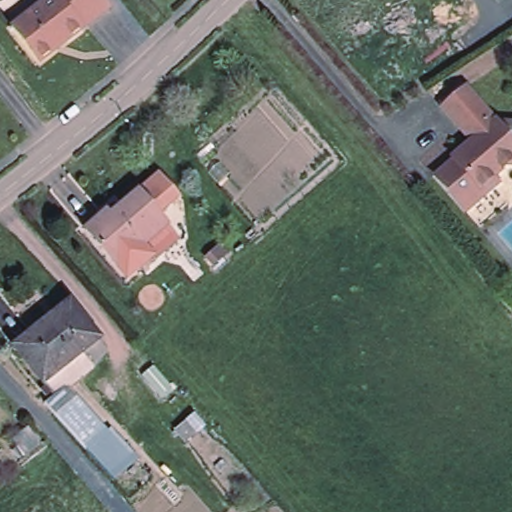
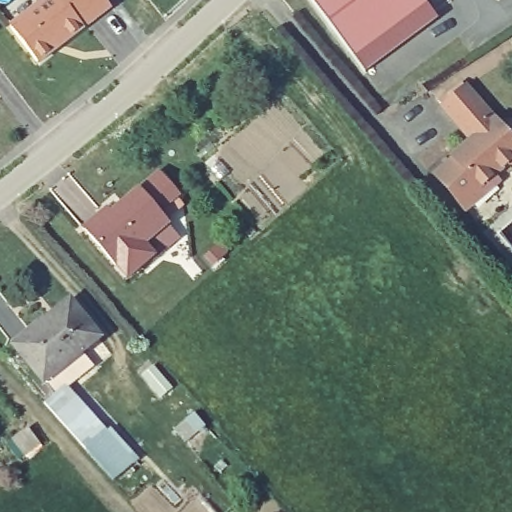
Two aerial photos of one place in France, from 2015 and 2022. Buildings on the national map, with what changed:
unchanged [(33,67),(4,29),(42,0),(103,0),(109,8),(33,67)]
new [(366,73),(310,0),(424,0),(439,20),(366,73)]
unchanged [(464,86),(496,122),(512,123),(512,164),(505,165),(494,176),(498,180),(464,210),(434,174),(471,139),(441,104),(464,86)]
unchanged [(144,249),(153,259),(128,282),(83,233),(114,205),(118,209),(138,192),(158,173),(179,197),(159,215),(169,227),(144,249)]
unchanged [(225,257),(214,267),(206,260),(218,249),(225,257)]
unchanged [(47,384),(18,350),(43,329),(40,326),(68,302),(100,340),(79,357),(91,370),(72,388),(113,433),(91,452),(50,406),(58,399),(47,384)]
unchanged [(155,368),(173,392),(161,401),(143,377),(155,368)]
unchanged [(113,433),(114,431),(142,462),(119,483),(91,452),(113,433)]

